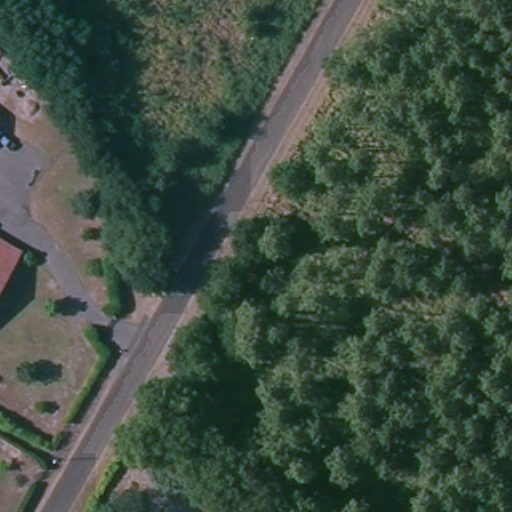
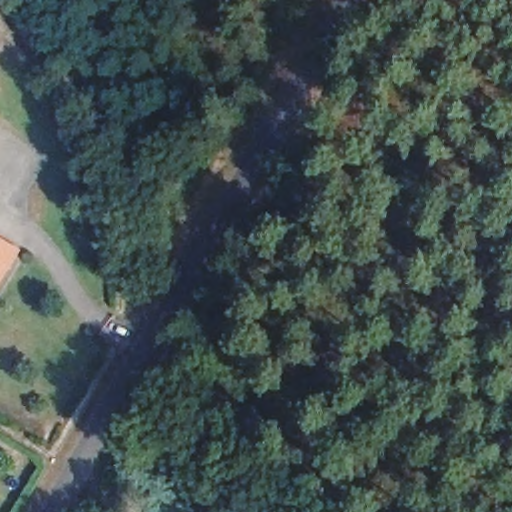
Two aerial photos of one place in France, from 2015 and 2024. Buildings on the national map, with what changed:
unchanged [(0,276),(0,251),(10,257),(0,276)]

